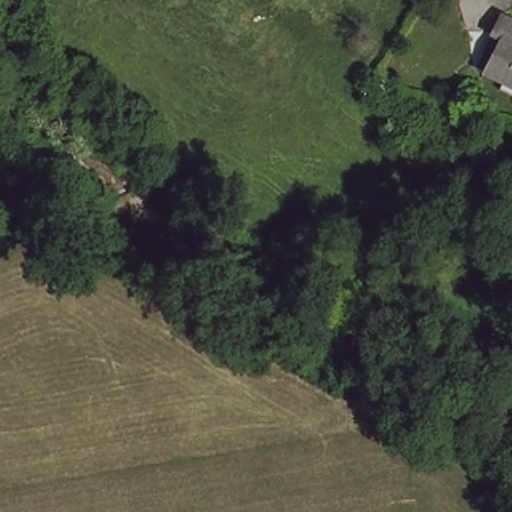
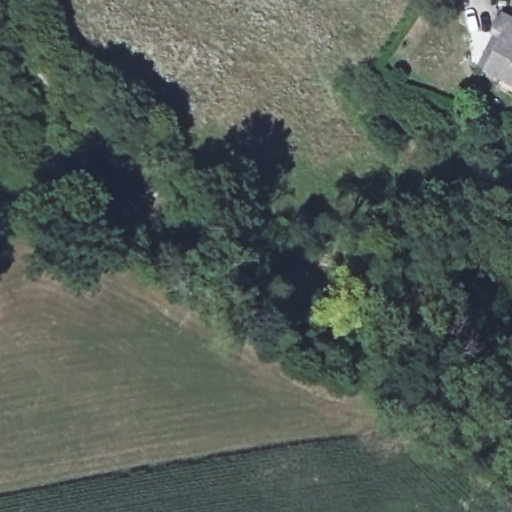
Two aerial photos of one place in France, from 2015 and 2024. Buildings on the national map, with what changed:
unchanged [(492,35),(488,32),(498,12),(512,19),(512,92),(484,77),(473,70),(492,35)]

